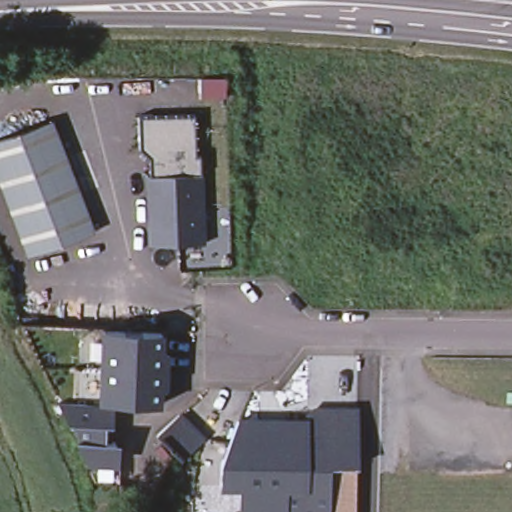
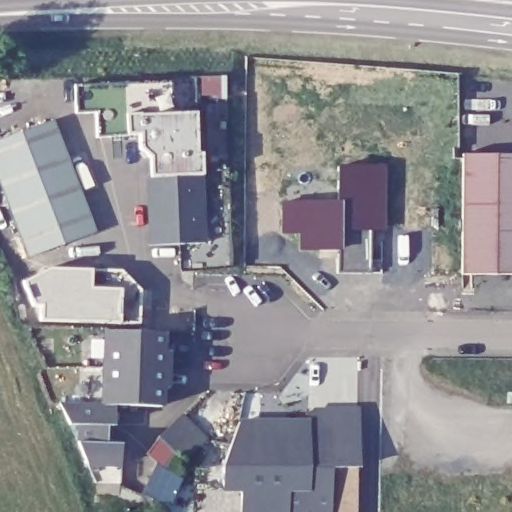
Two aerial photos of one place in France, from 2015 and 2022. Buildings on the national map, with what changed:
unchanged [(150,159),(140,148),(137,116),(193,113),(196,152),(202,154),(205,243),(150,245),(150,159)]
unchanged [(97,232),(31,257),(0,176),(0,140),(55,120),(97,232)]
new [(465,154),(512,154),(512,274),(464,274),(465,154)]
new [(286,202),(340,203),(340,167),(385,167),(385,273),(340,273),(340,248),(303,248),(303,232),(286,232),(286,202)]
unchanged [(114,404),(97,404),(101,330),(162,332),(162,348),(167,349),(167,383),(159,386),(158,404),(114,404)]
unchanged [(97,404),(114,404),(115,427),(107,427),(107,444),(121,445),(118,483),(96,483),(90,470),(76,446),(75,426),(70,426),(60,403),(97,404)]
unchanged [(326,468),(303,467),(303,487),(285,487),(285,512),(239,512),(240,496),(220,496),(220,471),(236,424),(306,425),(306,420),(315,410),(355,410),(353,468),(326,468)]
unchanged [(206,441),(185,461),(160,436),(182,416),(206,441)]
unchanged [(353,512),(326,512),(326,468),(353,468),(353,512)]

